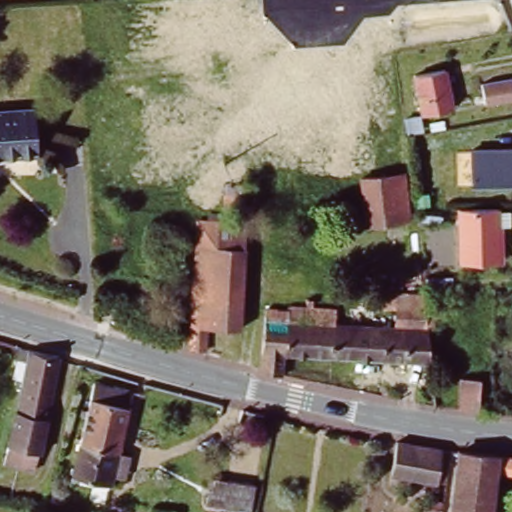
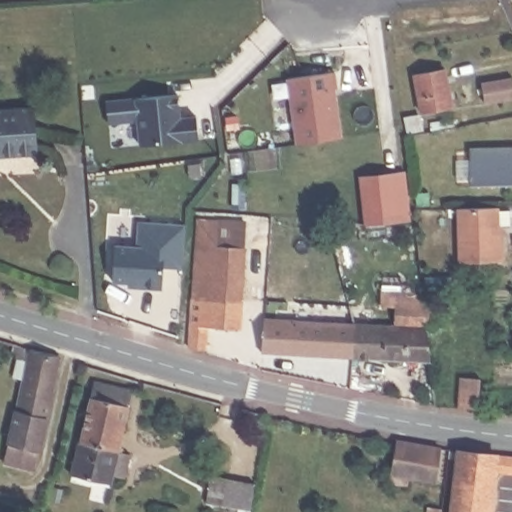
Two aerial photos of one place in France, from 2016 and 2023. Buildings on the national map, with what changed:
unchanged [(454,106),(424,111),(417,72),(447,67),(454,106)]
new [(295,145),(287,78),(336,72),(339,89),(335,89),(343,137),(295,145)]
unchanged [(512,80),(512,97),(482,102),(479,82),(512,77),(512,80)]
new [(139,146),(136,121),(107,124),(105,100),(179,92),(182,116),(197,115),(200,140),(139,146)]
unchanged [(0,153),(0,107),(27,105),(32,150),(0,153)]
unchanged [(469,182),(468,147),(512,147),(512,181),(469,182)]
unchanged [(407,217),(364,222),(359,177),(402,173),(407,217)]
unchanged [(502,265),(462,266),(460,209),(512,207),(512,229),(500,229),(502,265)]
unchanged [(201,239),(202,217),(250,219),(249,242),(201,239)]
new [(184,268),(164,267),(162,290),(129,287),(129,283),(112,282),(113,244),(137,246),(139,221),(185,224),(184,268)]
unchanged [(249,242),(245,296),(199,293),(201,239),(249,242)]
new [(382,307),(382,292),(424,293),(425,308),(427,325),(395,323),(395,307),(382,307)]
unchanged [(245,296),(244,324),(212,322),(211,345),(196,344),(199,293),(245,296)]
unchanged [(279,354),(278,375),(255,370),(262,308),(284,311),(285,306),(334,307),(333,322),(359,322),(359,317),(365,318),(365,323),(422,326),(425,361),(279,354)]
unchanged [(62,356),(61,358),(40,452),(35,452),(31,472),(4,466),(30,351),(62,356)]
unchanged [(482,415),(462,413),(464,381),(485,382),(482,415)]
unchanged [(77,464),(94,392),(133,401),(113,485),(57,472),(54,471),(57,459),(60,460),(77,464)]
unchanged [(448,444),(445,476),(409,472),(407,481),(389,478),(395,437),(448,444)]
unchanged [(495,444),(512,446),(512,463),(494,461),(487,512),(449,512),(459,440),(495,444)]
unchanged [(247,512),(205,504),(210,476),(255,484),(250,512),(247,512)]
unchanged [(425,512),(426,506),(441,508),(440,512),(425,512)]

